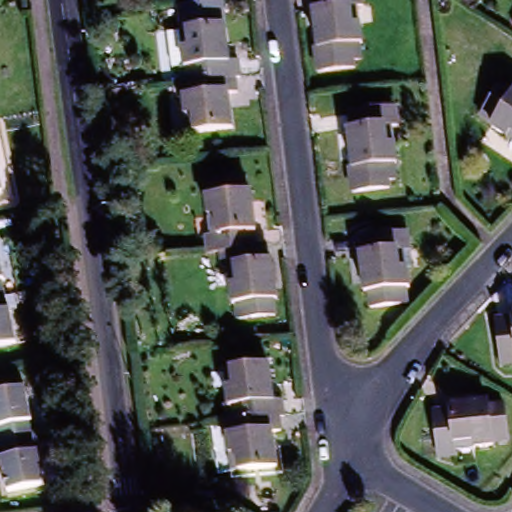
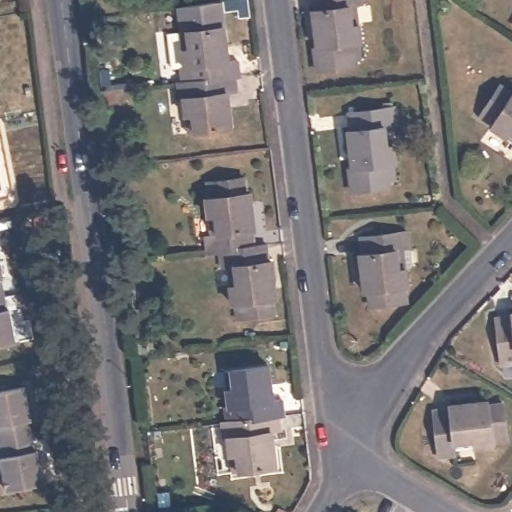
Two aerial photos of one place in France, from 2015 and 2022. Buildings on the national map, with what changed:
unchanged [(355,49),(357,65),(351,66),(352,75),(315,79),(312,55),(315,55),(311,19),(314,19),(312,1),(324,0),(361,0),(362,14),(356,15),(358,34),(359,49),(355,49)]
unchanged [(185,85),(183,69),(187,69),(185,51),(183,30),(181,10),(205,7),(224,5),(227,24),(231,64),(242,62),(243,79),(235,80),(185,85)]
unchanged [(187,121),(185,101),(181,102),(179,86),(185,85),(235,80),(237,96),(228,96),(233,136),(197,140),(189,140),(187,121)]
unchanged [(497,131),(483,122),(505,91),(512,96),(512,145),(508,142),(495,134),(497,131)]
unchanged [(395,167),(396,185),(390,185),(391,194),(353,197),(351,175),(354,175),(349,137),(353,137),(351,120),(399,115),(401,132),(395,134),(397,152),(398,167),(395,167)]
unchanged [(205,199),(208,199),(206,183),(244,178),(245,195),(249,195),(254,232),(250,233),(253,250),(239,251),(234,252),(219,254),(206,256),(203,234),(209,234),(207,215),(205,199)]
unchanged [(403,278),(405,295),(368,298),(367,282),(362,282),(358,247),(361,246),(359,229),(406,224),(408,243),(403,244),(405,263),(407,278),(403,278)]
unchanged [(8,280),(5,280),(11,310),(14,310),(20,343),(0,347),(0,247),(2,246),(8,280)]
unchanged [(271,264),(275,300),(272,301),(273,317),(235,321),(234,306),(231,306),(229,288),(228,269),(221,270),(219,254),(234,252),(239,251),(253,250),(266,247),(268,265),(271,264)]
unchanged [(494,316),(511,315),(511,311),(512,311),(512,361),(499,363),(494,316)]
unchanged [(229,420),(228,403),(231,403),(229,386),(227,365),(234,365),(272,360),(276,398),(285,397),(288,413),(284,414),(229,420)]
unchanged [(30,416),(27,417),(33,447),(36,446),(42,480),(6,487),(0,456),(0,453),(3,453),(0,438),(0,387),(23,383),(30,416)]
unchanged [(457,453),(442,455),(437,408),(453,407),(452,403),(491,400),(491,404),(506,402),(511,440),(495,441),(495,443),(477,445),(457,446),(457,453)]
unchanged [(234,457),(232,438),(227,438),(225,421),(229,420),(284,414),(286,430),(276,431),(281,471),(244,475),(236,475),(234,457)]

